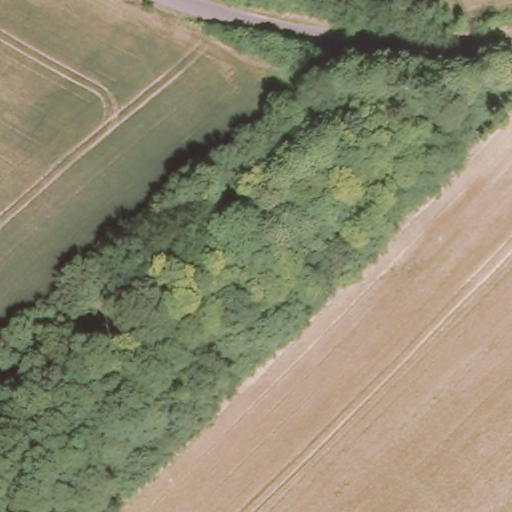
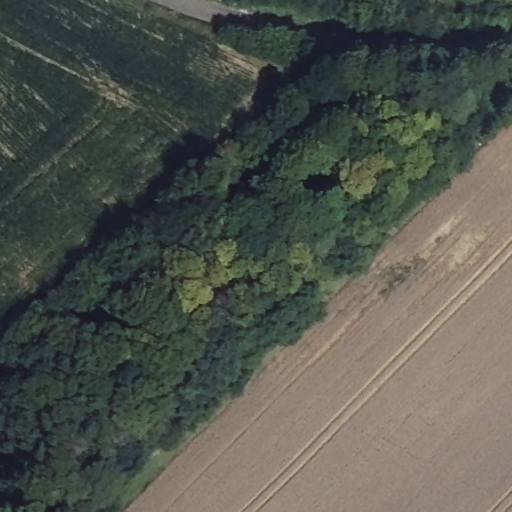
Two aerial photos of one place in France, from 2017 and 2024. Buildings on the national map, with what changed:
unchanged [(206,230),(221,217),(245,196),(256,210),(232,230),(217,242),(206,230)]

